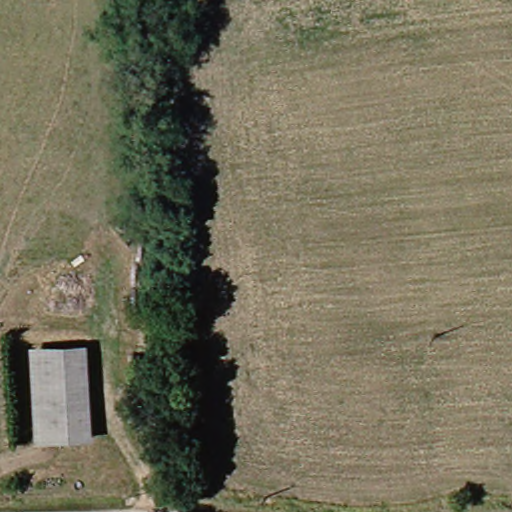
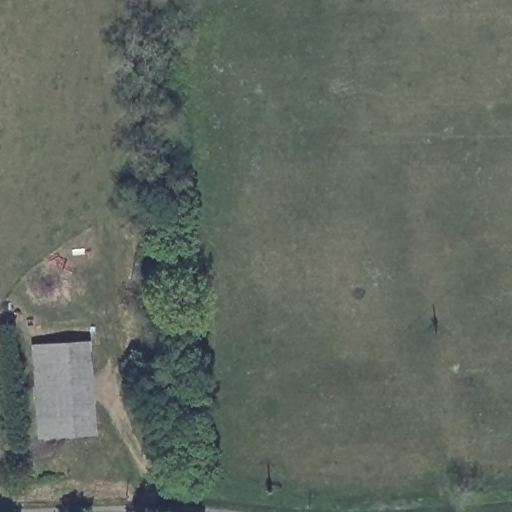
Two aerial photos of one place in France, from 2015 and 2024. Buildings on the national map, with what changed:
unchanged [(37,347),(91,345),(97,434),(44,437),(37,347)]

